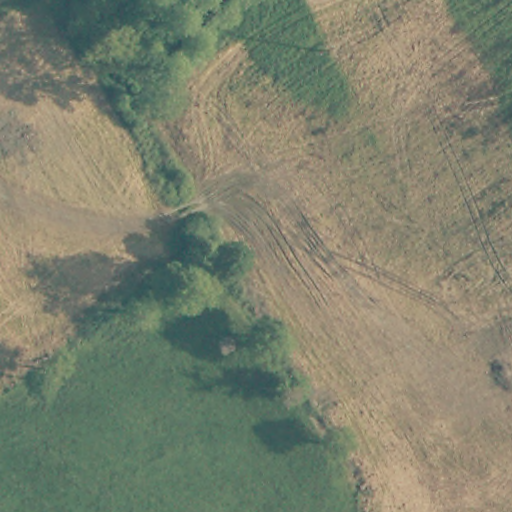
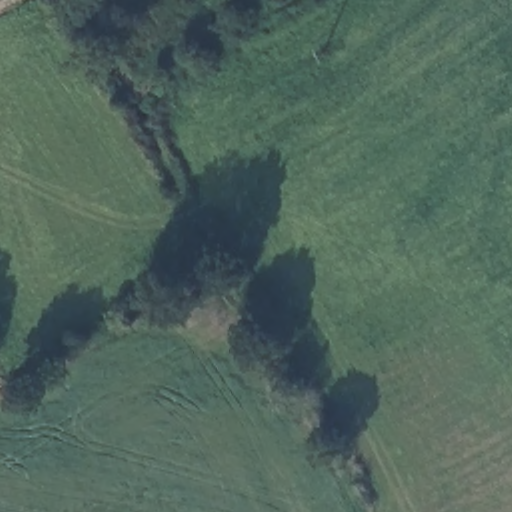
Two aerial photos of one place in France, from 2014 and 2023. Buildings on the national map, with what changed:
unchanged [(80,13),(72,0),(102,0),(80,13)]

